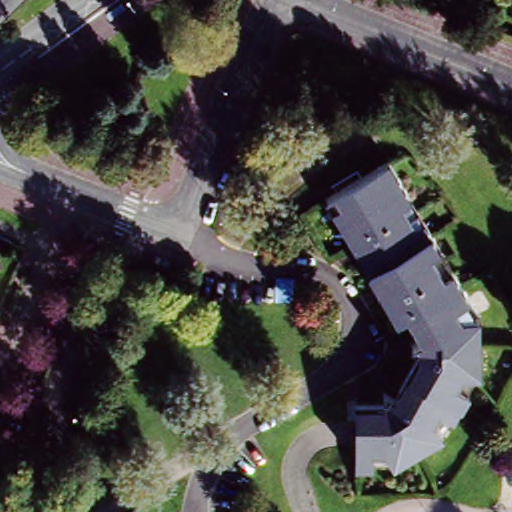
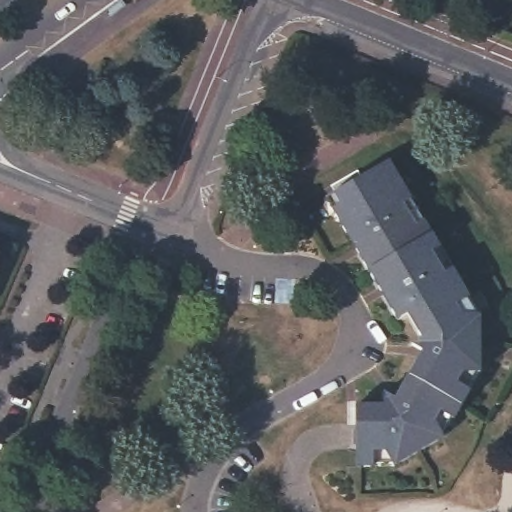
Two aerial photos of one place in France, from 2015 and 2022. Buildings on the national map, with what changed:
unchanged [(357,468),(352,406),(382,404),(382,393),(395,399),(421,351),(410,343),(420,336),(405,312),(395,319),(327,213),(318,199),(328,193),(382,160),(405,197),(418,218),(435,245),(448,266),(465,295),(476,313),(478,312),(482,367),(477,367),(467,385),(471,387),(457,417),(452,415),(442,433),(446,436),(394,467),(390,461),(372,463),(372,467),(357,468)]

